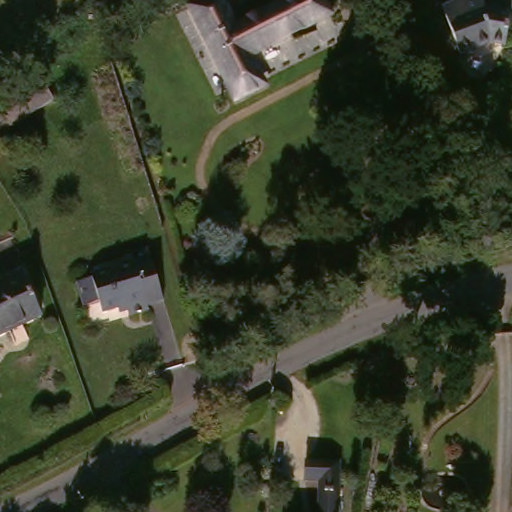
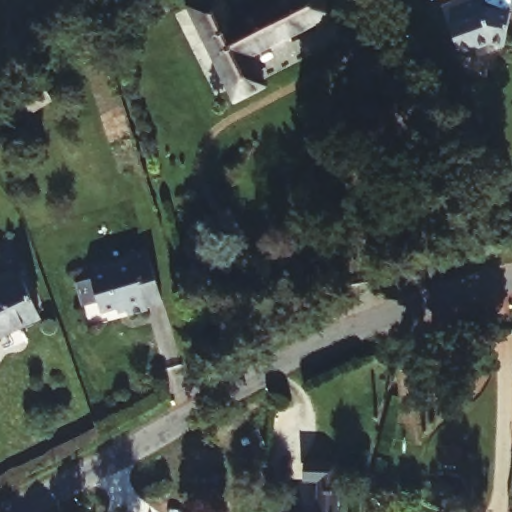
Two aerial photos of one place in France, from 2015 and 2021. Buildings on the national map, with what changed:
unchanged [(305,0),(318,0),(328,21),(248,60),(263,91),(237,103),(192,12),(217,0),(219,0),(235,34),(305,0)]
unchanged [(512,10),(512,20),(508,43),(490,41),(477,47),(479,51),(464,57),(445,6),(460,0),(487,0),(490,8),(512,10)]
unchanged [(63,105),(0,142),(0,114),(50,83),(63,105)]
unchanged [(165,300),(149,305),(151,312),(131,318),(129,311),(121,313),(120,309),(105,314),(102,303),(87,308),(79,284),(93,280),(92,276),(135,262),(133,254),(149,249),(165,300)]
unchanged [(0,296),(32,282),(50,323),(0,346),(0,296)]
unchanged [(316,480),(317,462),(347,462),(347,512),(326,512),(326,480),(316,480)]

